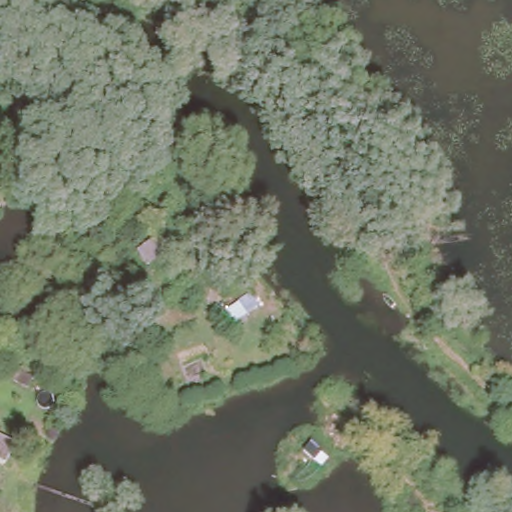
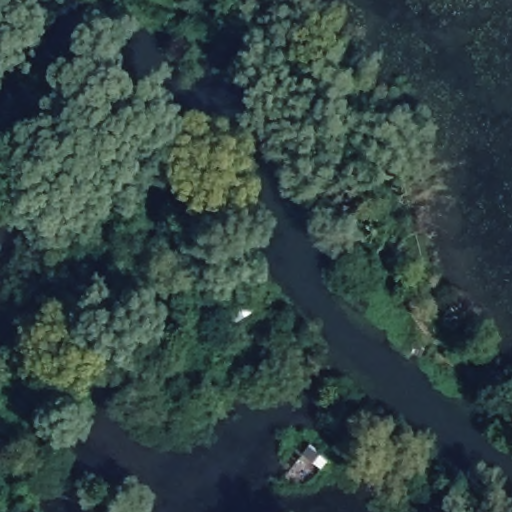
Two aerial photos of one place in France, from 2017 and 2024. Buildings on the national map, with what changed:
unchanged [(0,72),(0,70),(1,70),(0,72)]
unchanged [(234,303),(217,279),(203,287),(175,249),(195,235),(222,276),(233,270),(249,293),(234,303)]
unchanged [(160,236),(171,251),(145,269),(134,252),(160,236)]
unchanged [(0,462),(0,436),(17,446),(5,465),(0,462)]

